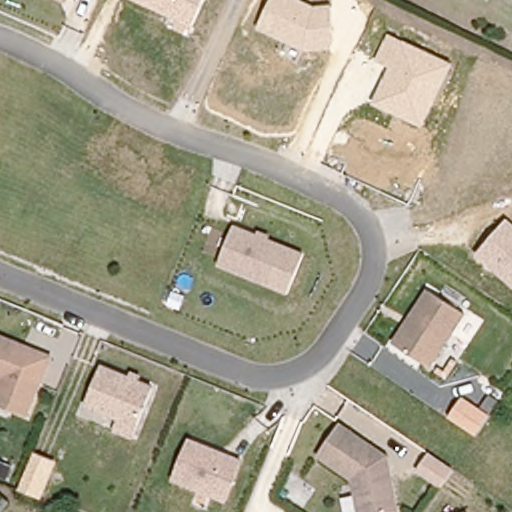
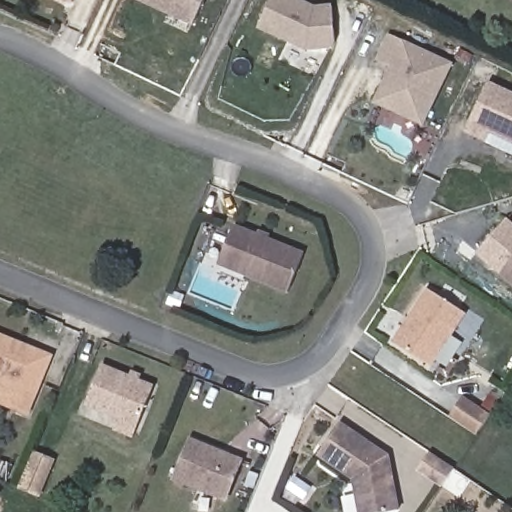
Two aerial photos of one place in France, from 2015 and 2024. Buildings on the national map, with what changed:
unchanged [(65,4),(56,0),(68,0),(65,4)]
unchanged [(192,28),(134,0),(205,0),(192,28)]
unchanged [(335,43),(329,51),(305,53),(257,30),(271,0),(301,0),(315,7),(330,5),(335,43)]
unchanged [(376,62),(388,35),(404,42),(453,64),(424,128),(373,105),(390,68),(376,62)]
new [(487,143),(465,133),(488,81),(512,92),(512,144),(490,134),(487,143)]
unchanged [(477,255),(506,219),(512,224),(512,285),(477,255)]
unchanged [(219,267),(234,226),(305,252),(289,294),(219,267)]
unchanged [(426,287),(462,311),(427,364),(391,341),(426,287)]
unchanged [(32,418),(0,404),(0,384),(2,379),(0,378),(0,334),(55,355),(32,418)]
unchanged [(87,407),(104,367),(130,377),(133,372),(143,375),(141,382),(154,387),(133,439),(115,432),(120,420),(87,407)]
new [(464,399),(489,416),(477,434),(452,417),(464,399)]
unchanged [(390,459),(402,512),(363,512),(357,483),(320,459),(341,427),(390,459)]
unchanged [(189,438),(244,461),(229,503),(174,481),(189,438)]
unchanged [(44,501),(19,490),(34,450),(61,460),(44,501)]
unchanged [(429,452),(459,471),(445,491),(416,472),(429,452)]
unchanged [(0,501),(0,496),(3,498),(0,501)]

